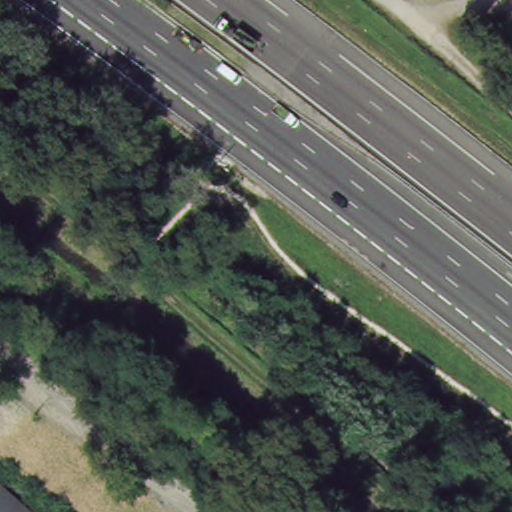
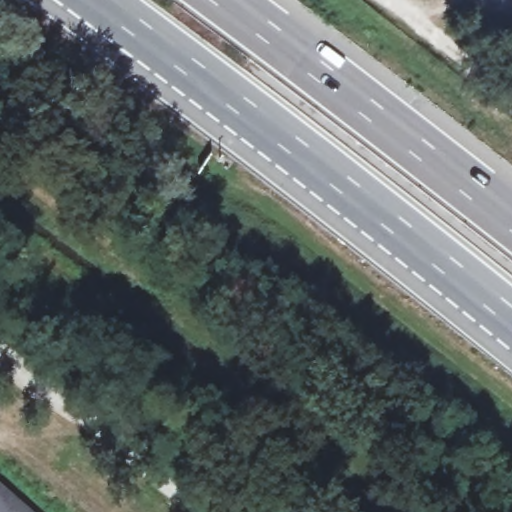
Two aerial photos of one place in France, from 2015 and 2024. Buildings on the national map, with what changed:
unchanged [(33,512),(0,512),(0,483),(33,512)]

